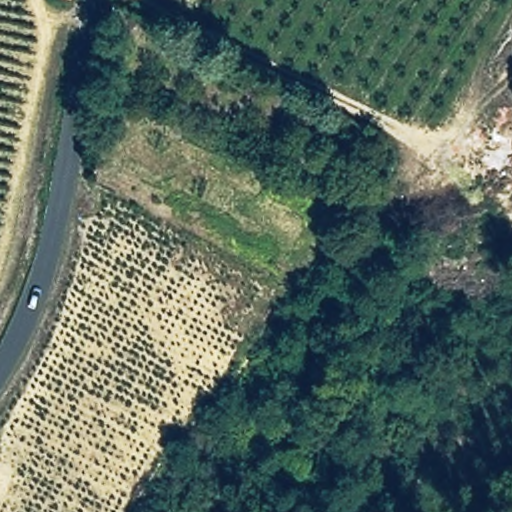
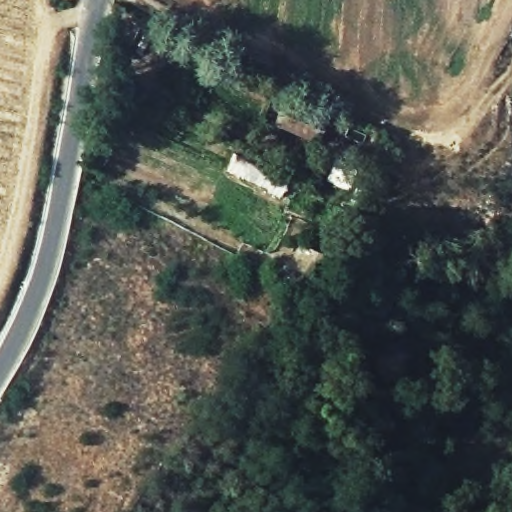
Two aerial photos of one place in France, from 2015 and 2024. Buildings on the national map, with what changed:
unchanged [(71,2),(55,0),(72,0),(71,2)]

